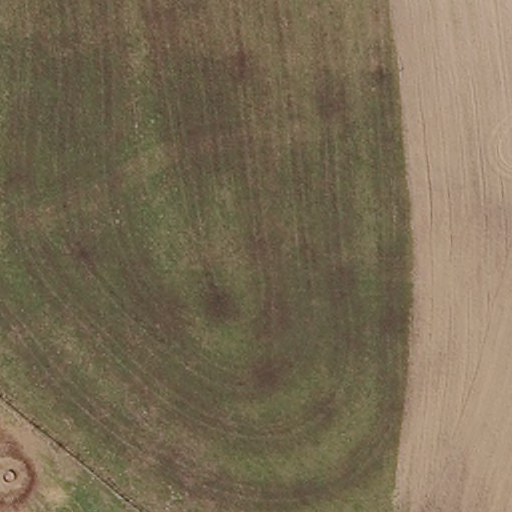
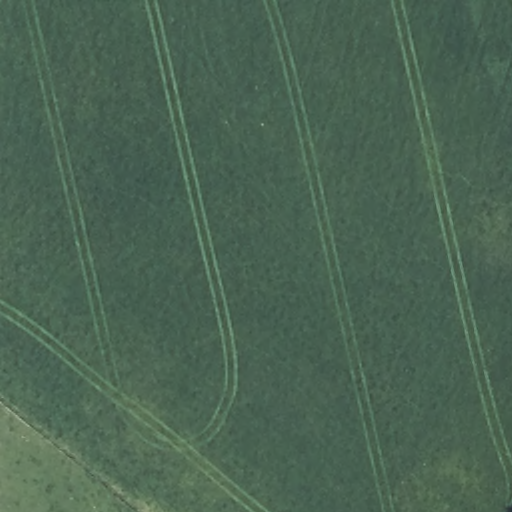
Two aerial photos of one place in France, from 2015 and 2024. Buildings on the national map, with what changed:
[]

